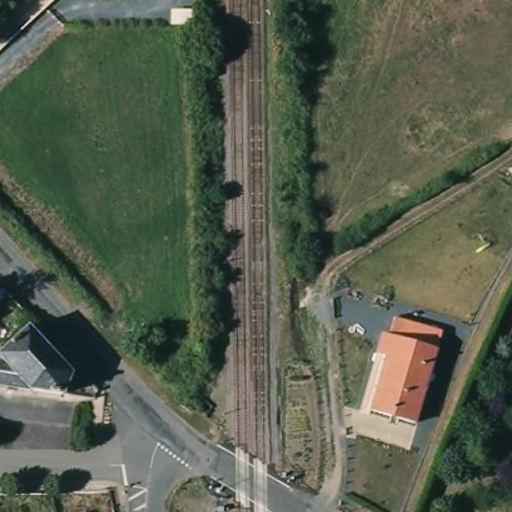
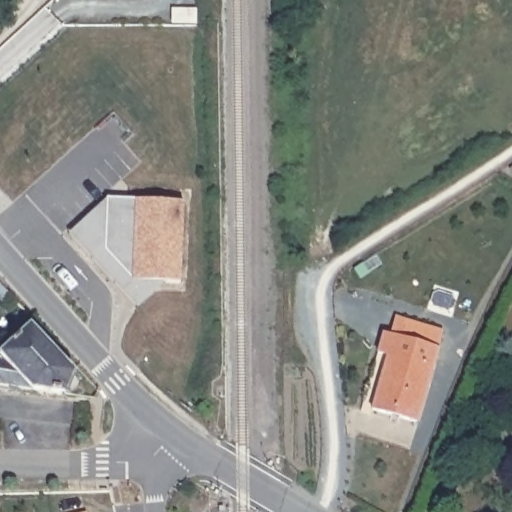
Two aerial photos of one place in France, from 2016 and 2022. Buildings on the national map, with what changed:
new [(67,235),(105,199),(183,202),(180,283),(163,283),(136,309),(67,235)]
unchanged [(7,293),(1,306),(0,305),(0,286),(7,293)]
unchanged [(377,355),(380,337),(389,339),(393,317),(437,325),(436,336),(421,424),(376,415),(387,358),(377,355)]
unchanged [(75,376),(67,398),(39,392),(0,386),(0,357),(4,357),(31,328),(75,376)]

